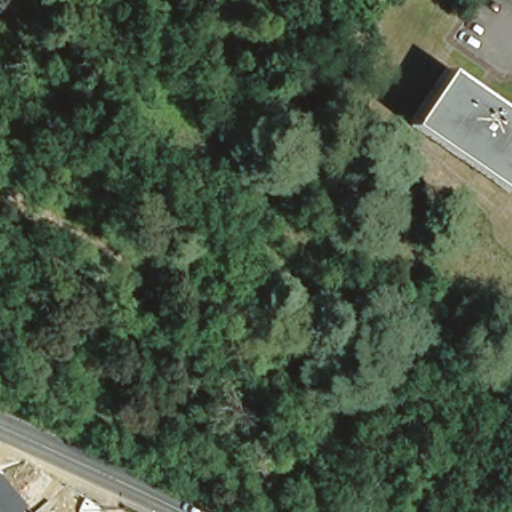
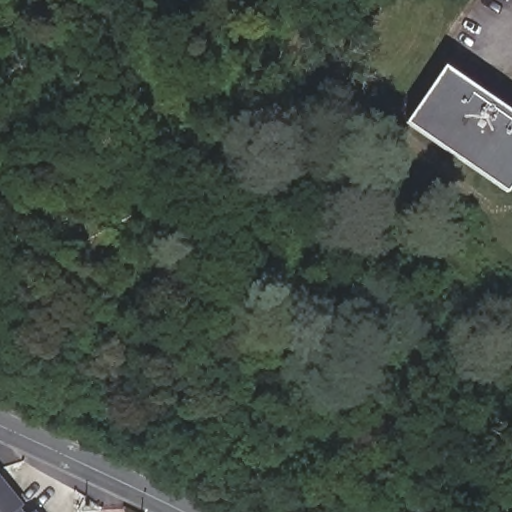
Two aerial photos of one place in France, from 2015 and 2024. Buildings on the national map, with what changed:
unchanged [(512,180),(503,192),(403,117),(440,68),(512,121),(512,180)]
unchanged [(20,505),(17,508),(21,512),(0,512),(0,479),(20,505)]

